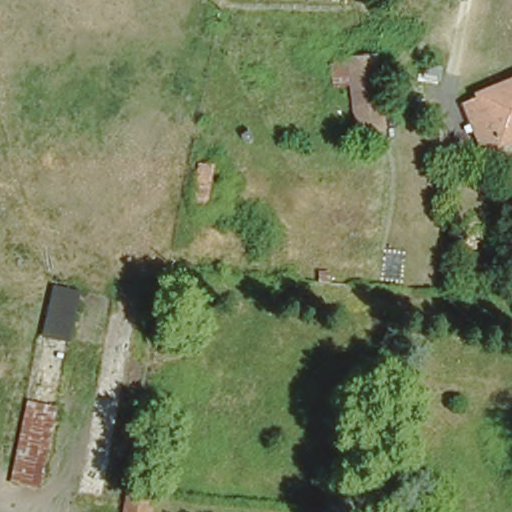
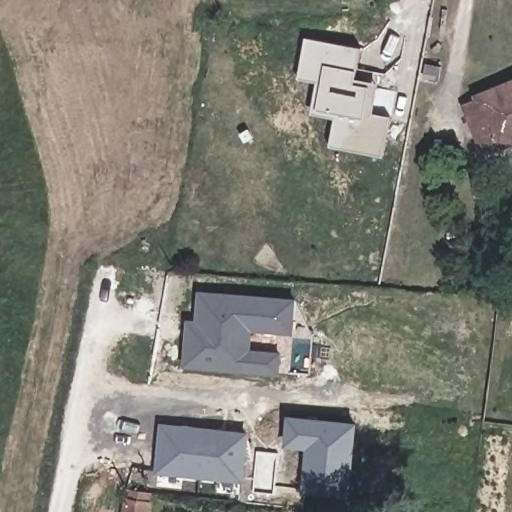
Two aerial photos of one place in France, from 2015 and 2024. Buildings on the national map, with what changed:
new [(311,108),(316,82),(299,79),(306,37),(360,47),(355,78),(378,83),(373,113),(390,116),(383,155),(329,145),(334,113),(311,108)]
demolished [(346,63),(373,58),(375,71),(383,108),(387,127),(360,135),(346,63)]
unchanged [(480,94),(478,91),(512,76),(512,136),(498,142),(497,139),(484,144),(466,101),(480,94)]
demolished [(55,268),(81,271),(77,284),(84,287),(40,486),(4,479),(55,268)]
new [(186,319),(196,319),(198,291),(297,297),(294,334),(253,330),(252,348),(282,351),(281,374),(183,366),(186,319)]
new [(358,422),(351,497),(301,492),(306,448),(284,446),(287,415),(358,422)]
new [(249,431),(245,482),(155,473),(160,423),(249,431)]
unchanged [(124,492),(133,494),(132,504),(142,506),(141,512),(120,512),(124,492)]

